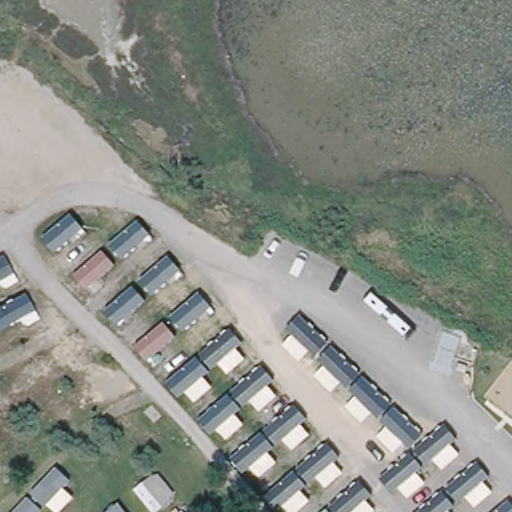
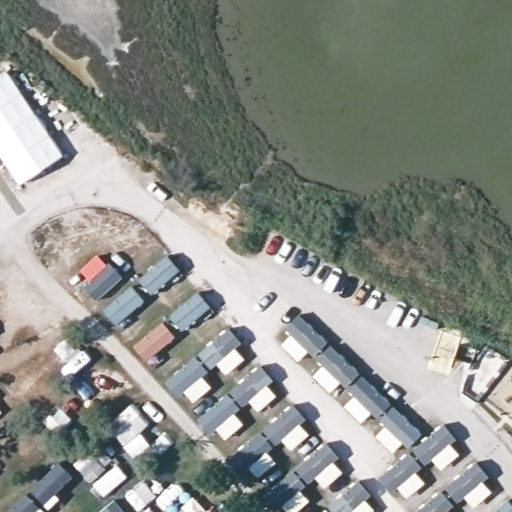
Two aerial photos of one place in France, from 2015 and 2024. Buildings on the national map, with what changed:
new [(0,152),(0,76),(8,71),(64,155),(21,184),(0,152)]

